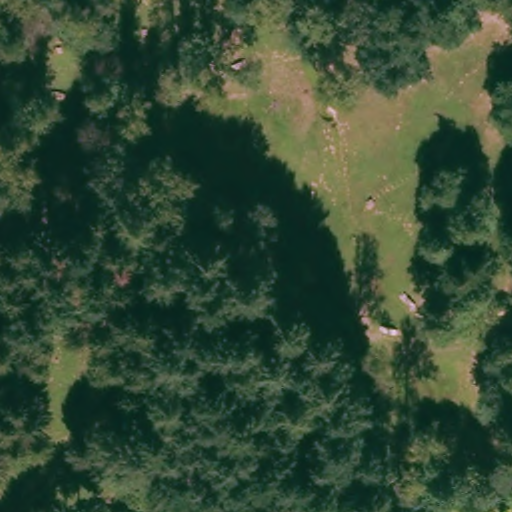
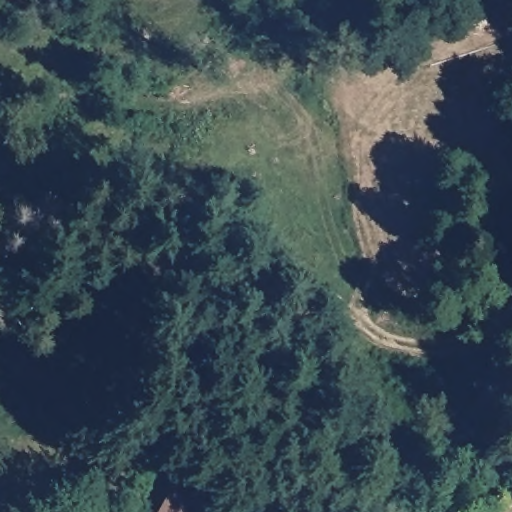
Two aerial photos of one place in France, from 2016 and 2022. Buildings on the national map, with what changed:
unchanged [(155,512),(164,494),(196,512),(155,512)]

